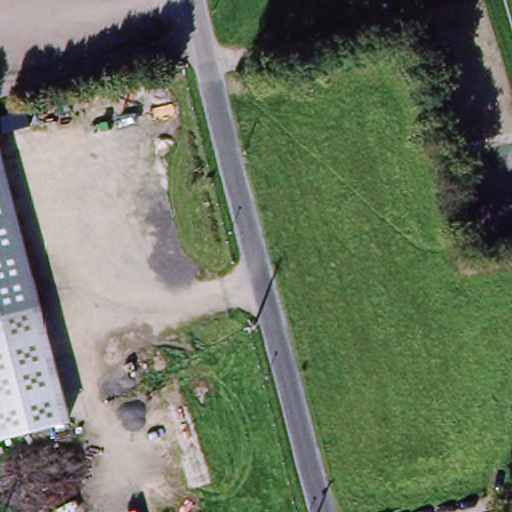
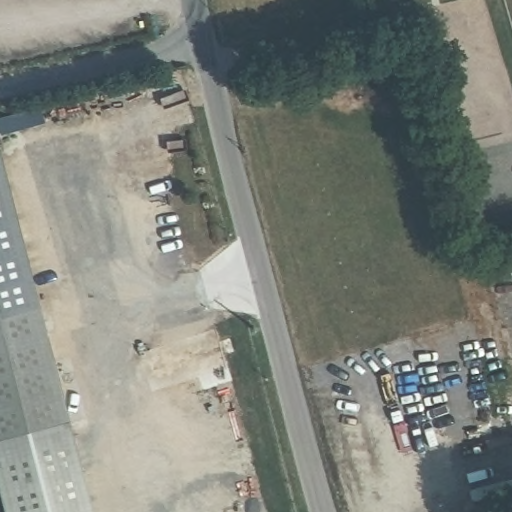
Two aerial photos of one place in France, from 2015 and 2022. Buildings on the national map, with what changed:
unchanged [(36,306),(0,315),(0,169),(36,306)]
demolished [(154,220),(143,223),(137,199),(148,195),(154,220)]
demolished [(512,239),(509,240),(505,222),(512,220),(512,239)]
unchanged [(36,306),(40,305),(70,424),(0,442),(0,315),(36,306)]
new [(6,512),(0,489),(0,442),(70,424),(92,512),(6,512)]

